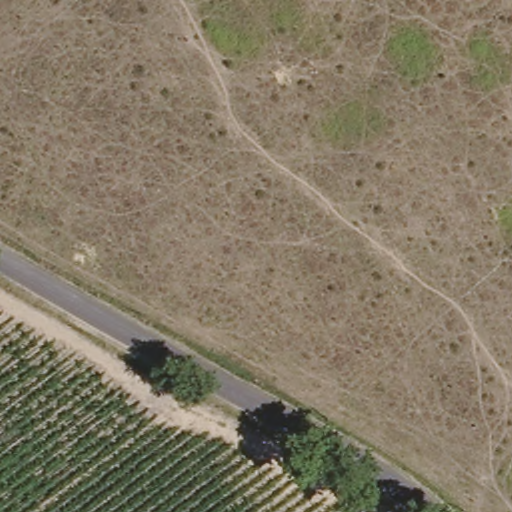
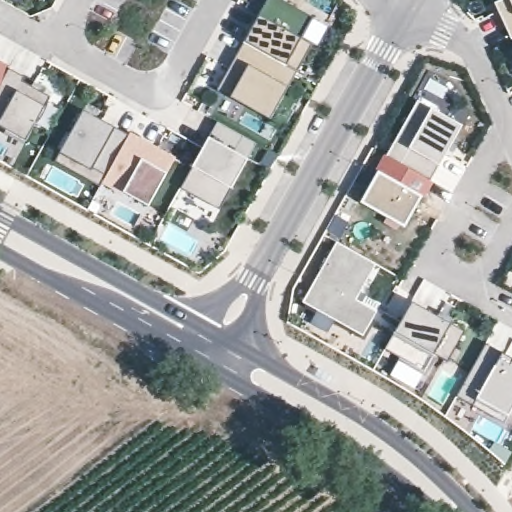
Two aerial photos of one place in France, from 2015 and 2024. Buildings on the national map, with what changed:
new [(282,0),(312,16),(300,38),(311,44),(296,71),(245,42),(268,0),(282,0)]
new [(501,0),(512,0),(512,39),(504,23),(495,3),(499,1),(501,0)]
new [(296,71),(270,119),(218,89),(245,42),(296,71)]
new [(0,64),(9,69),(0,84),(0,64)]
new [(23,81),(51,97),(27,141),(0,126),(0,85),(9,69),(25,78),(23,81)]
new [(431,181),(387,156),(418,100),(458,123),(449,139),(450,147),(431,181)]
new [(55,162),(61,151),(83,112),(112,129),(113,126),(129,135),(106,177),(100,187),(55,162)]
new [(209,138),(218,122),(257,144),(232,188),(229,187),(218,204),(206,198),(204,202),(181,188),(204,148),(209,138)]
new [(175,160),(149,207),(104,182),(129,135),(175,160)]
new [(397,227),(388,222),(388,217),(362,202),(388,156),(431,181),(405,227),(402,224),(397,227)]
new [(377,264),(357,299),(378,312),(364,336),(304,302),(337,242),(377,264)]
new [(367,295),(363,303),(357,299),(361,292),(367,295)]
new [(412,301),(466,331),(447,363),(434,356),(424,373),(385,351),(412,301)]
new [(512,358),(512,410),(509,416),(478,398),(474,406),(457,396),(487,343),(512,358)]

